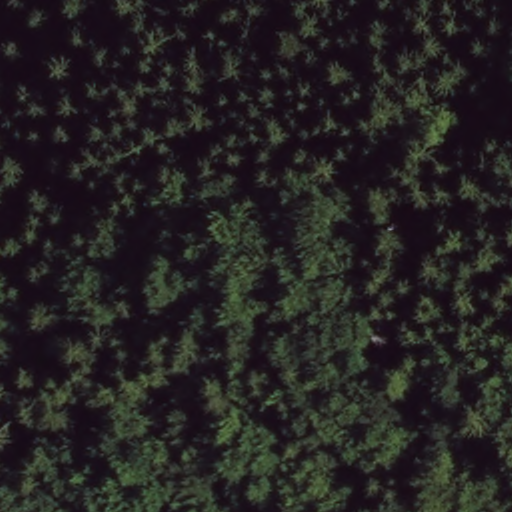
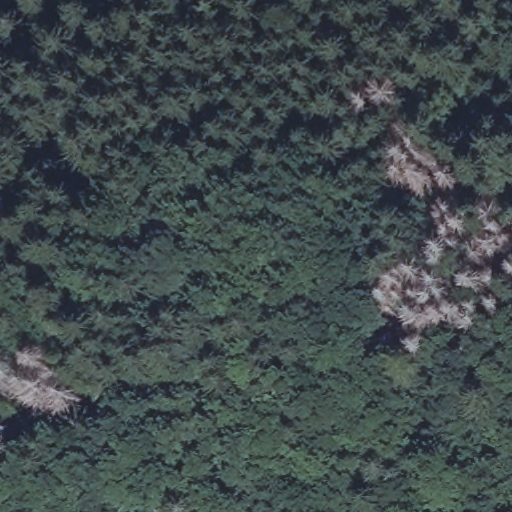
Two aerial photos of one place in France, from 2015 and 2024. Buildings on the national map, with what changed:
[]

